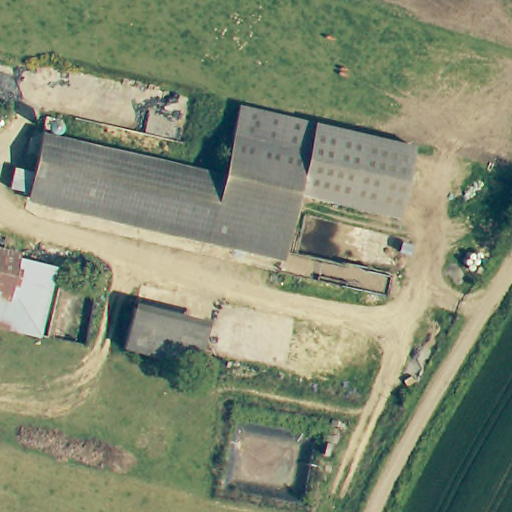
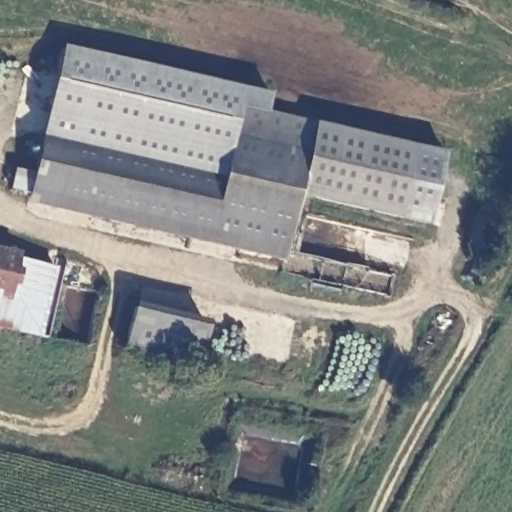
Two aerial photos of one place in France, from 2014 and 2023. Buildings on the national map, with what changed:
new [(263,113),(241,108),(225,179),(44,136),(64,45),(272,91),(263,113)]
unchanged [(241,108),(452,152),(432,221),(298,195),(225,179),(241,108)]
unchanged [(211,237),(31,195),(44,136),(225,179),(211,237)]
unchanged [(298,195),(285,255),(211,237),(225,179),(298,195)]
unchanged [(56,267),(41,336),(0,327),(0,255),(56,267)]
unchanged [(207,325),(199,364),(124,350),(132,309),(207,325)]

